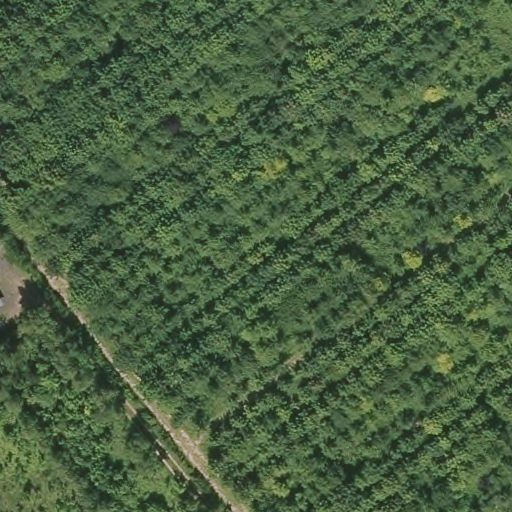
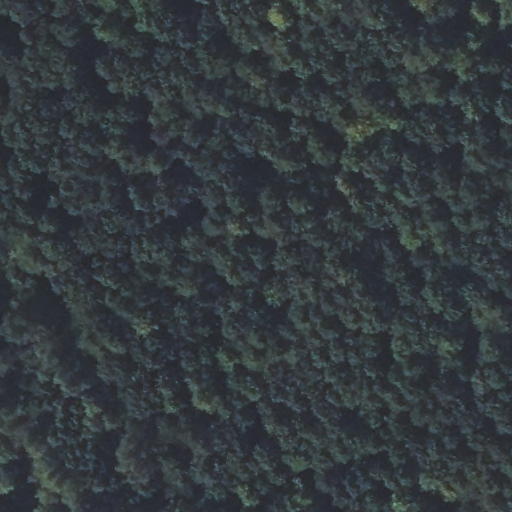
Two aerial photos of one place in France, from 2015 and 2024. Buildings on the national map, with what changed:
unchanged [(2,302),(0,304),(0,299),(2,302)]

